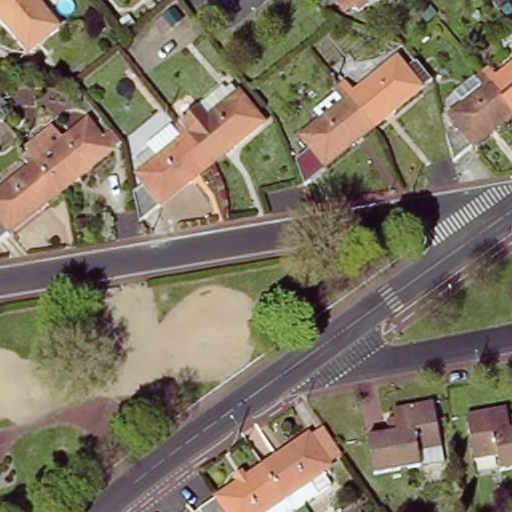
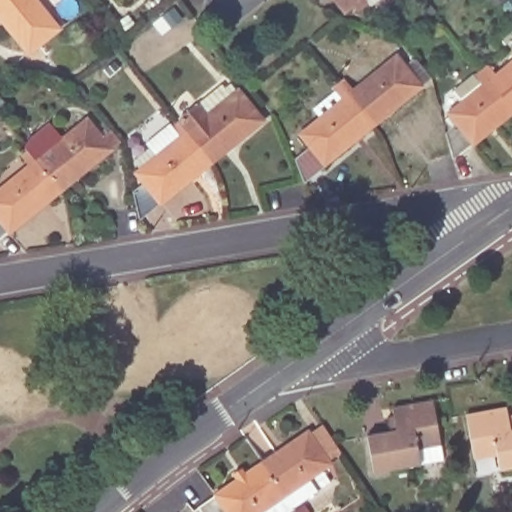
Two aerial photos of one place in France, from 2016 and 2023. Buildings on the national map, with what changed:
unchanged [(23,52),(0,24),(0,0),(31,0),(53,28),(23,52)]
unchanged [(356,11),(351,5),(344,11),(336,0),(367,0),(369,1),(356,11)]
unchanged [(348,83),(356,93),(397,61),(422,91),(374,129),(341,88),(348,83)]
unchanged [(489,68),(496,78),(512,66),(512,113),(482,73),(489,68)]
unchanged [(475,79),(482,73),(512,113),(512,114),(448,163),(441,134),(454,124),(448,115),(483,88),(475,79)]
unchanged [(217,163),(186,122),(183,119),(229,85),(233,90),(239,85),(244,93),(268,124),(217,163)]
unchanged [(326,166),(330,171),(307,189),(299,164),(313,153),(301,137),(319,122),(312,112),(341,88),(374,129),(326,166)]
unchanged [(39,145),(46,155),(91,120),(115,151),(63,191),(33,151),(39,145)]
unchanged [(144,219),(135,191),(148,182),(141,172),(162,157),(151,142),(169,128),(178,139),(183,135),(178,128),(186,122),(217,163),(144,219)]
unchanged [(0,191),(32,166),(25,157),(33,151),(63,191),(0,240),(0,191)]
unchanged [(443,452),(421,455),(423,471),(376,479),(369,443),(391,439),(388,425),(396,424),(394,414),(434,407),(443,452)]
unchanged [(506,416),(512,414),(512,468),(498,471),(495,456),(471,461),(463,415),(504,407),(506,416)]
unchanged [(314,472),(322,486),(284,512),(275,499),(254,469),(299,438),(312,429),(328,452),(315,461),(320,468),(314,472)]
unchanged [(275,499),(255,512),(191,512),(229,486),(224,479),(233,473),(238,479),(254,469),(275,499)]

